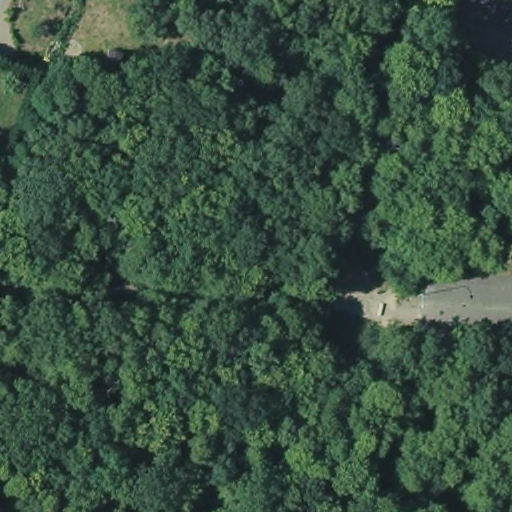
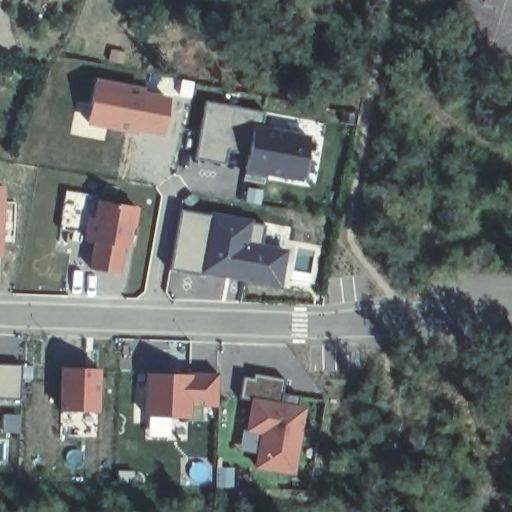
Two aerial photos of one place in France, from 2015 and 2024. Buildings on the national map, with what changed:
new [(147,88),(146,95),(171,99),(166,135),(87,125),(94,79),(147,88)]
new [(204,100),(264,110),(261,129),(311,138),(305,182),(246,173),(249,152),(228,150),(225,163),(194,157),(204,100)]
new [(3,255),(0,255),(0,184),(5,184),(3,255)]
new [(139,209),(136,229),(134,228),(130,249),(125,248),(120,275),(93,270),(98,243),(88,241),(91,219),(98,220),(101,202),(139,209)]
new [(283,290),(173,270),(182,207),(268,223),(266,244),(289,249),(283,290)]
new [(21,365),(21,399),(0,400),(0,364),(21,365)]
new [(100,412),(62,412),(63,367),(101,369),(100,412)]
new [(194,375),(220,375),(219,410),(193,410),(193,420),(146,419),(146,374),(194,375)]
new [(241,401),(244,378),(254,380),(256,376),(287,382),(284,396),(281,407),(254,402),(254,403),(241,401)]
new [(254,402),(281,407),(283,399),(301,403),(299,410),(306,411),(294,475),(258,469),(264,434),(249,432),(254,403),(254,402)]

